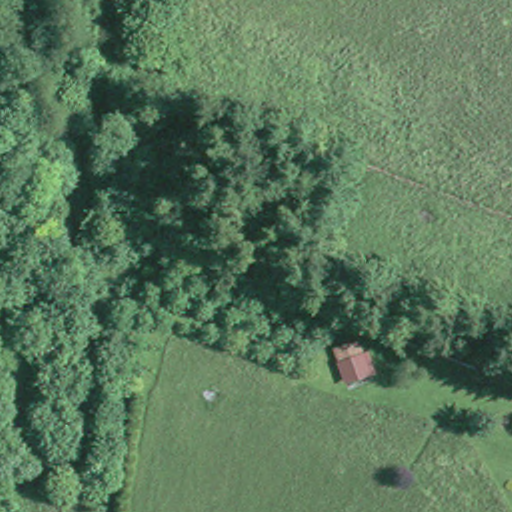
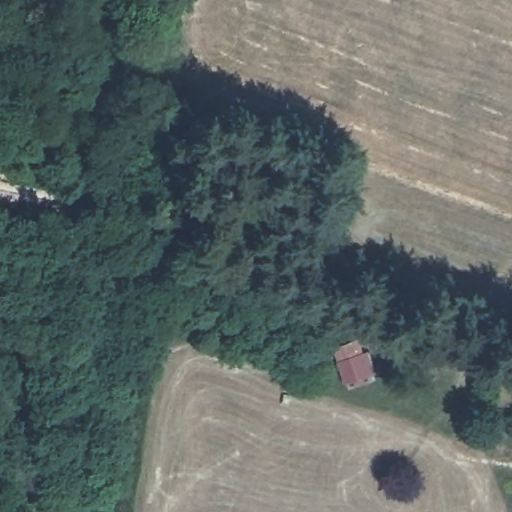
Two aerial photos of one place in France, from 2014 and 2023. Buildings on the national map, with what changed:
unchanged [(368,343),(380,381),(346,389),(337,350),(368,343)]

